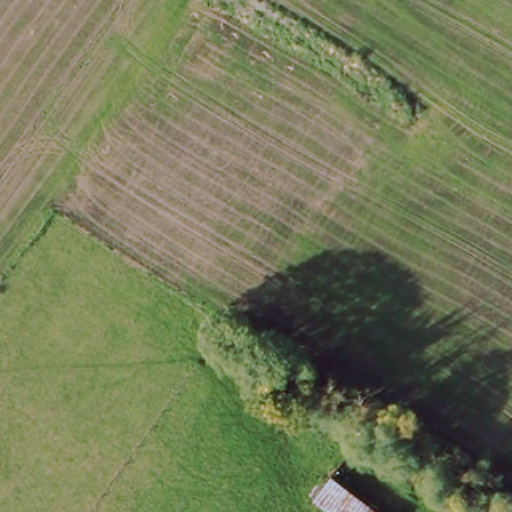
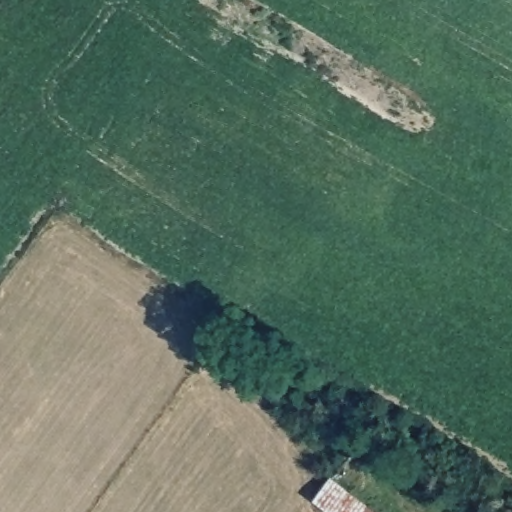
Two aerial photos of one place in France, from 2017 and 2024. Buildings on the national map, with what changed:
unchanged [(330,475),(375,512),(328,512),(310,497),(330,475)]

